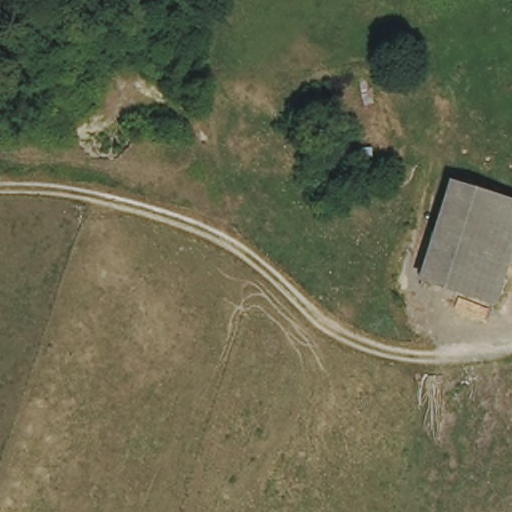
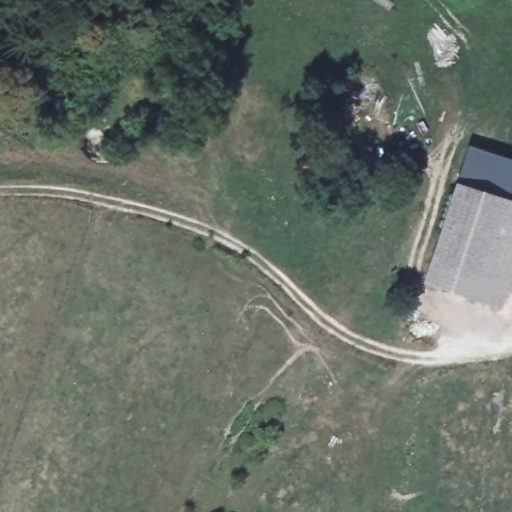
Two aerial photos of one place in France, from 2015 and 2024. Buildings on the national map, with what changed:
new [(512,159),(512,183),(507,197),(454,180),(468,145),(512,159)]
unchanged [(454,180),(512,199),(512,248),(496,300),(424,277),(454,180)]

